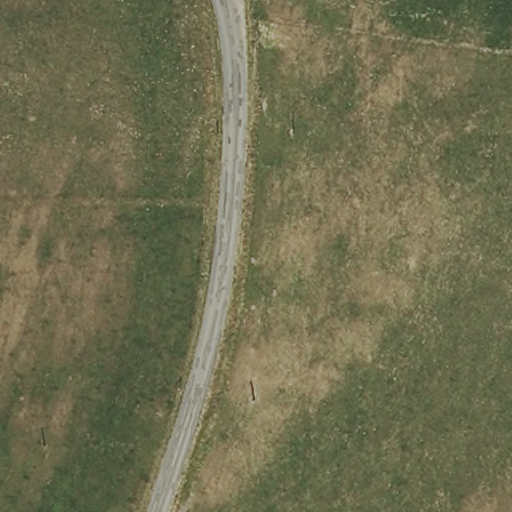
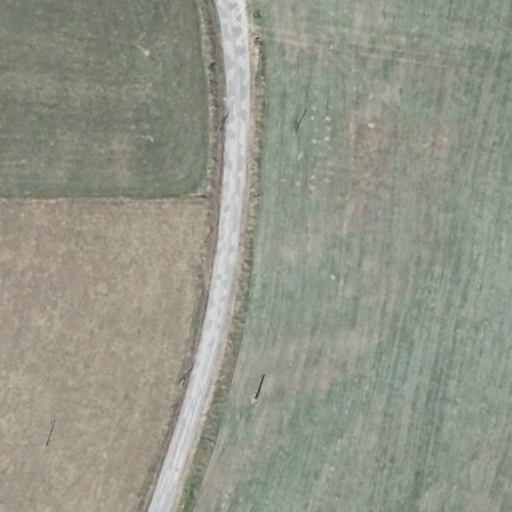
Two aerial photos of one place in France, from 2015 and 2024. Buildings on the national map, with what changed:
[]

